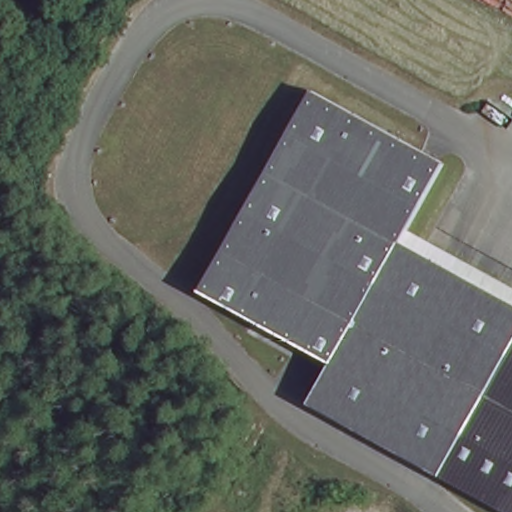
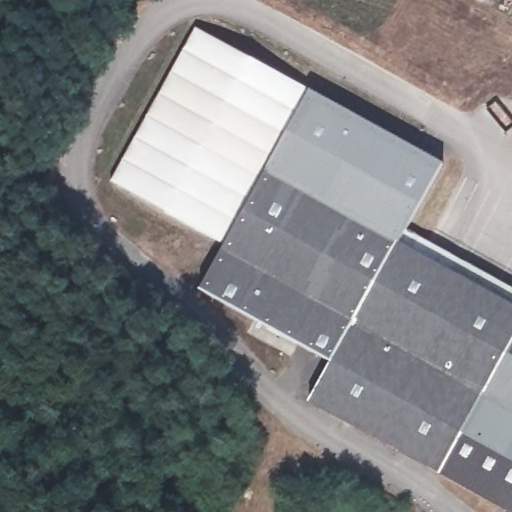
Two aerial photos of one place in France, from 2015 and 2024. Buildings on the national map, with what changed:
new [(218,243),(110,181),(195,27),(302,83),(218,243)]
unchanged [(398,239),(333,358),(198,281),(302,83),(440,156),(402,225),(512,289),(512,304),(398,239)]
unchanged [(310,400),(333,358),(398,239),(512,304),(512,512),(506,512),(310,400)]

